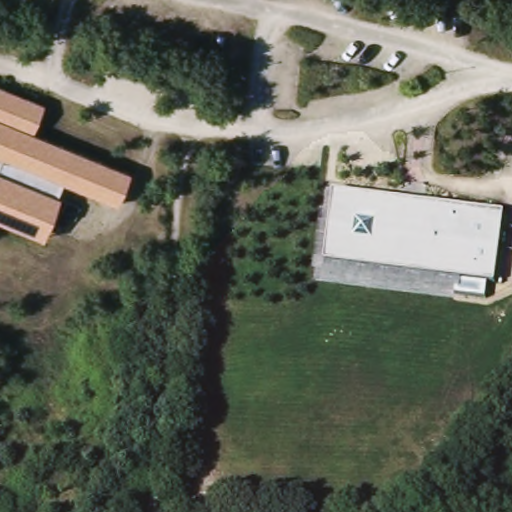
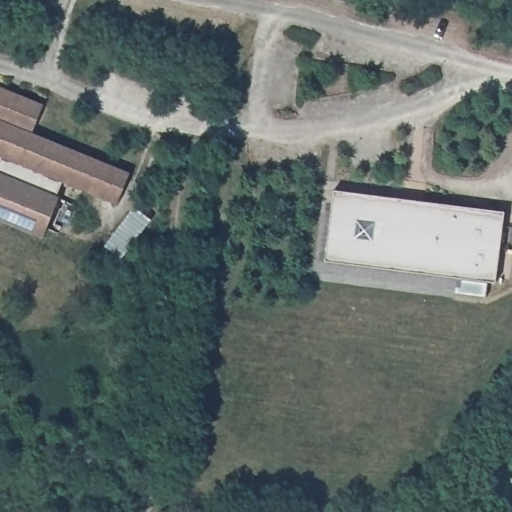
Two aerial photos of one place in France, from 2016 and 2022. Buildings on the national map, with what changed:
unchanged [(0,157),(1,156),(0,156),(0,86),(42,103),(32,131),(130,172),(118,204),(64,183),(42,239),(0,221),(0,157)]
unchanged [(327,260),(334,189),(502,212),(495,280),(327,260)]

